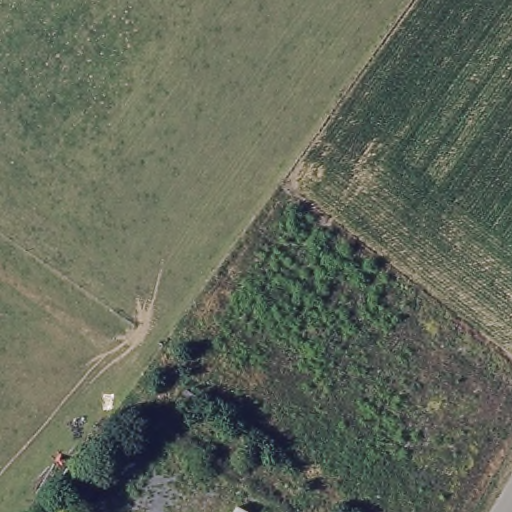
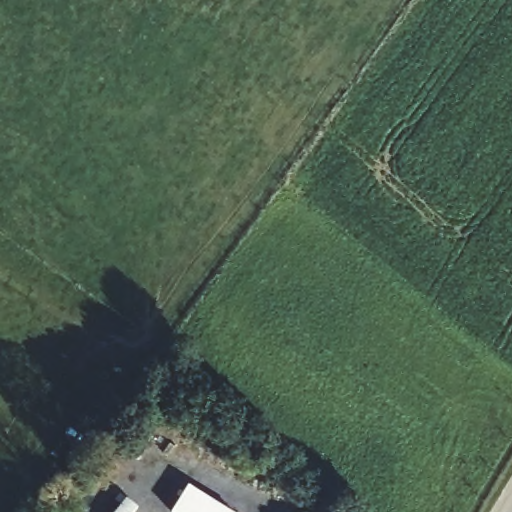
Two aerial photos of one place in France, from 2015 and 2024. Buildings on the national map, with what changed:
new [(173,512),(190,485),(233,512),(173,512)]

